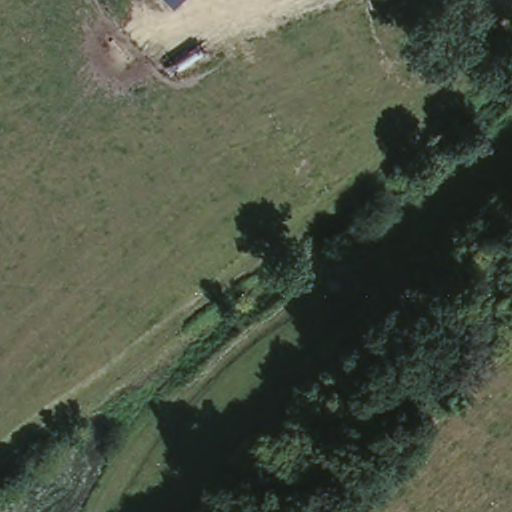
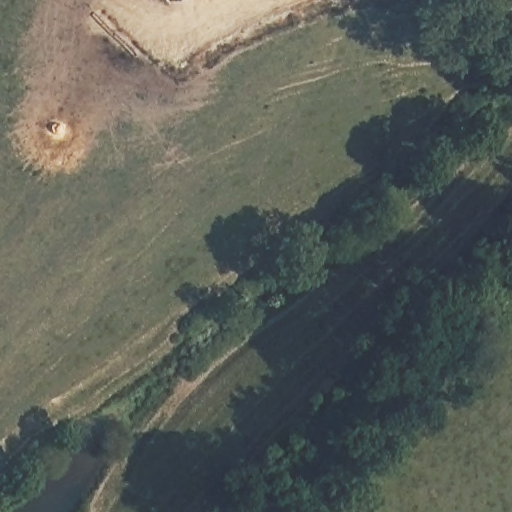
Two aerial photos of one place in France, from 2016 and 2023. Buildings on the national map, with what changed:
unchanged [(175,1),(173,0),(176,0),(175,1)]

